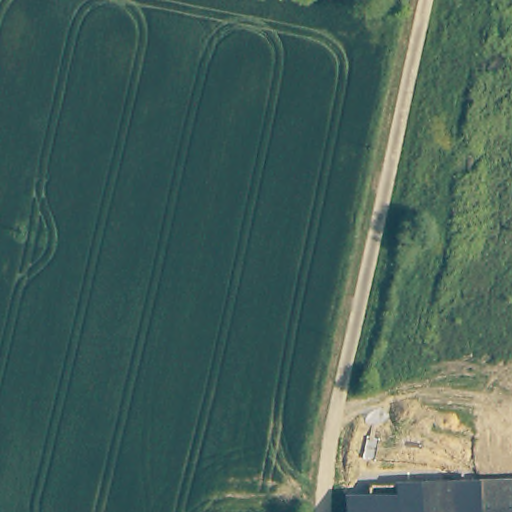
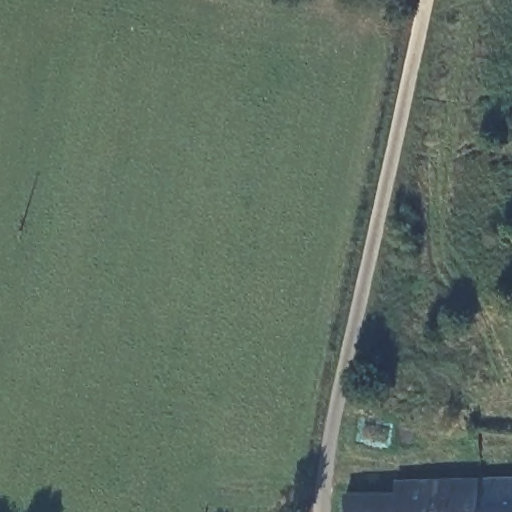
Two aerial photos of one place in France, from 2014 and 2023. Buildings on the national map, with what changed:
unchanged [(381,488),(512,483),(512,512),(357,512),(357,508),(358,499),(381,498),(381,488)]

